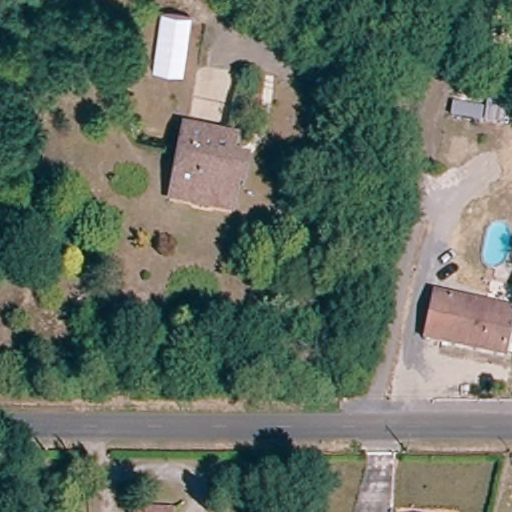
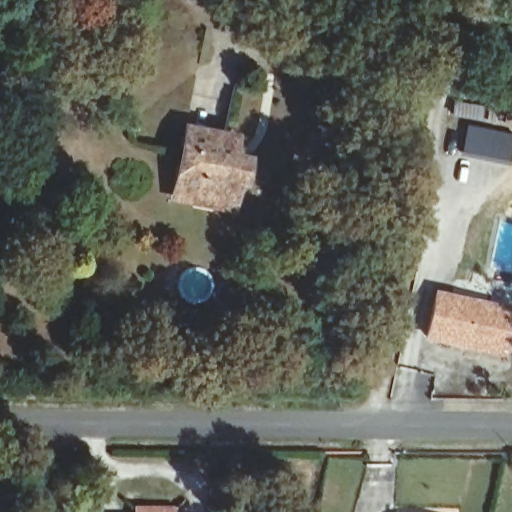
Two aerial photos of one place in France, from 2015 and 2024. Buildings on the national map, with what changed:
unchanged [(446,115),(450,100),(485,104),(487,86),(511,91),(505,124),(446,115)]
new [(512,148),(509,163),(462,153),(467,126),(512,134),(512,148)]
unchanged [(206,213),(184,208),(166,205),(169,192),(179,139),(232,150),(230,163),(230,168),(240,171),(236,190),(229,188),(224,209),(222,216),(206,213)]
unchanged [(512,336),(508,355),(430,339),(439,296),(512,311),(512,336)]

